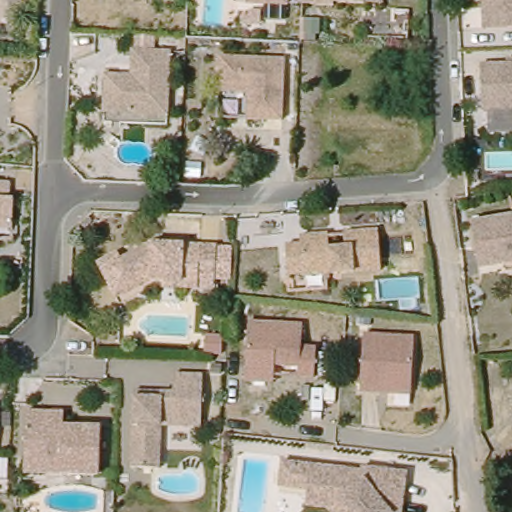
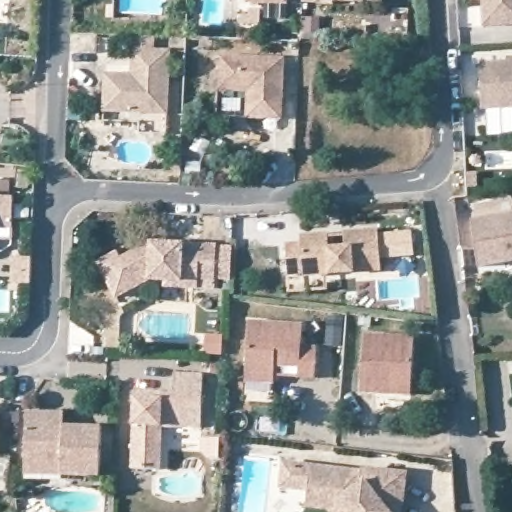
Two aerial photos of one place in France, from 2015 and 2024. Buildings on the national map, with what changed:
unchanged [(286,2),(249,1),(249,0),(286,0),(286,2)]
unchanged [(365,8),(315,9),(315,0),(365,0),(365,8)]
unchanged [(482,27),(481,0),(512,0),(512,24),(482,27)]
unchanged [(167,53),(166,116),(100,115),(101,84),(102,75),(131,76),(132,52),(167,53)]
unchanged [(284,57),(281,121),(247,119),(247,89),(219,87),(220,54),(284,57)]
unchanged [(512,65),(512,107),(481,109),(478,67),(512,65)]
unchanged [(5,199),(13,199),(12,230),(0,229),(0,183),(5,183),(5,199)]
unchanged [(512,215),(512,260),(465,261),(465,216),(512,215)]
unchanged [(332,239),(332,249),(348,249),(348,236),(383,236),(383,275),(285,277),(283,246),(304,245),(305,239),(332,239)]
unchanged [(158,288),(158,282),(148,281),(118,302),(93,267),(112,254),(117,261),(142,244),(207,247),(206,281),(192,281),(191,290),(158,288)]
unchanged [(301,326),(300,347),(315,348),(313,380),(298,379),(298,371),(275,370),(273,386),(245,385),(247,322),(301,326)]
unchanged [(363,335),(414,340),(409,399),(359,396),(363,335)]
unchanged [(170,376),(199,377),(197,429),(155,427),(155,451),(153,471),(127,470),(131,400),(131,392),(154,392),(170,392),(170,376)]
unchanged [(24,481),(27,410),(60,412),(60,426),(98,427),(96,477),(45,475),(45,482),(24,481)]
unchanged [(307,498),(307,491),(280,487),(283,462),(310,466),(361,472),(362,469),(406,475),(403,495),(401,512),(327,512),(305,509),(307,498)]

